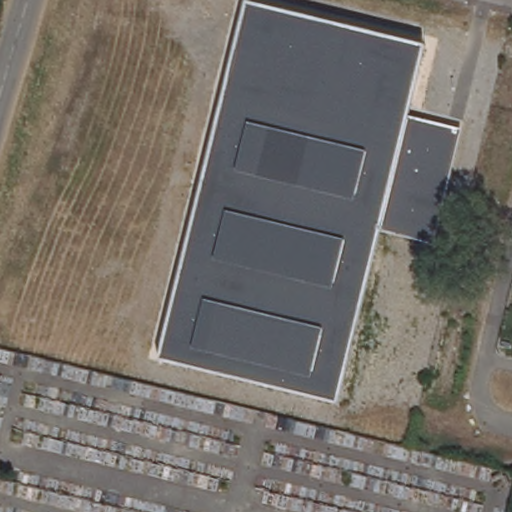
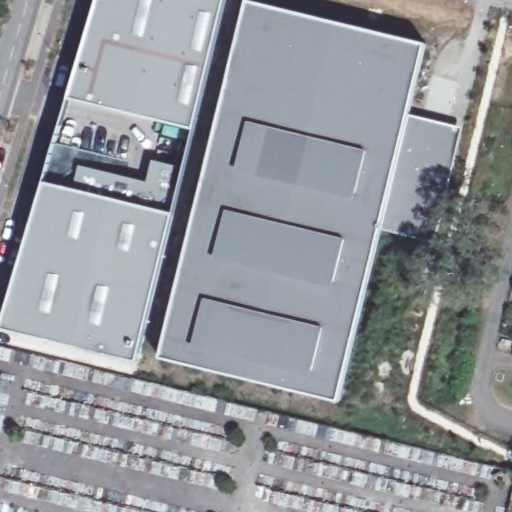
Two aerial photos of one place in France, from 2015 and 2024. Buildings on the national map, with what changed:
new [(72,100),(106,0),(225,0),(196,131),(72,100)]
unchanged [(408,116),(461,129),(433,244),(379,230),(337,403),(159,359),(246,3),(424,46),(408,116)]
new [(76,189),(83,165),(162,185),(168,165),(185,172),(136,364),(1,328),(48,183),(76,189)]

